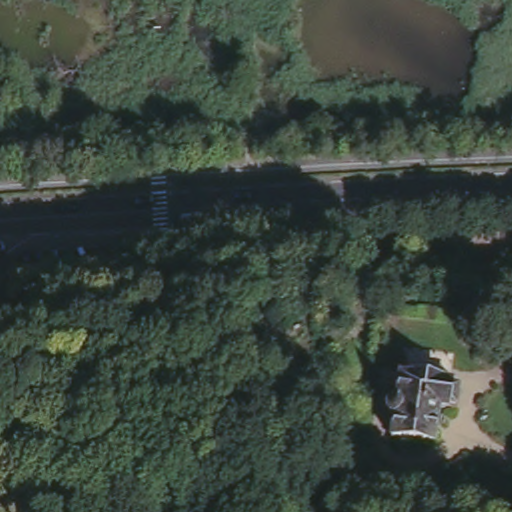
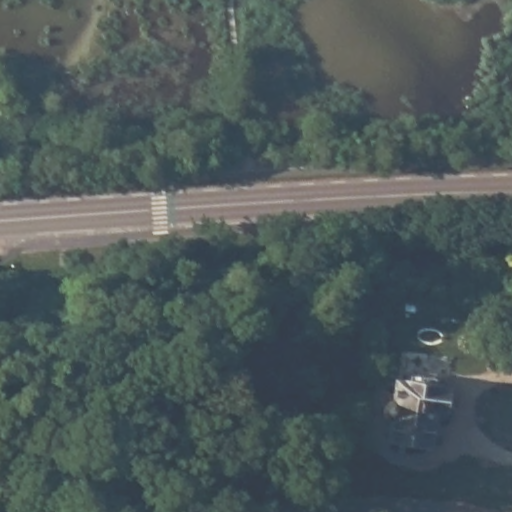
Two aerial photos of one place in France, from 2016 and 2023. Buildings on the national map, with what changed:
unchanged [(437,387),(445,388),(445,389),(454,391),(451,409),(442,408),(442,409),(434,409),(430,443),(388,437),(390,416),(388,415),(386,414),(385,414),(384,413),(384,412),(383,410),(384,409),(384,408),(384,406),(385,404),(386,403),(387,402),(389,401),(390,401),(392,401),(396,380),(408,382),(409,376),(433,379),(432,385),(438,386),(437,387)]
unchanged [(282,403),(312,402),(314,433),(284,433),(282,403)]

